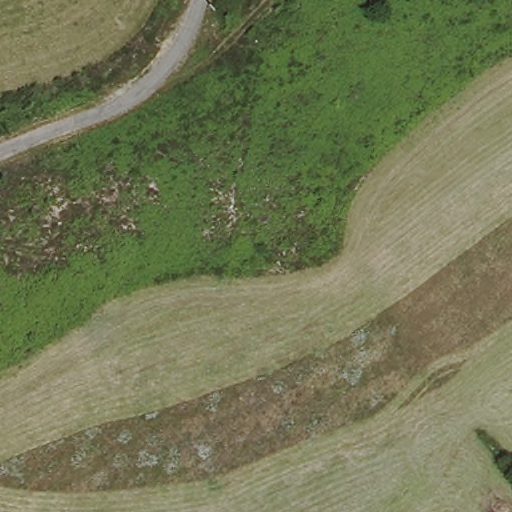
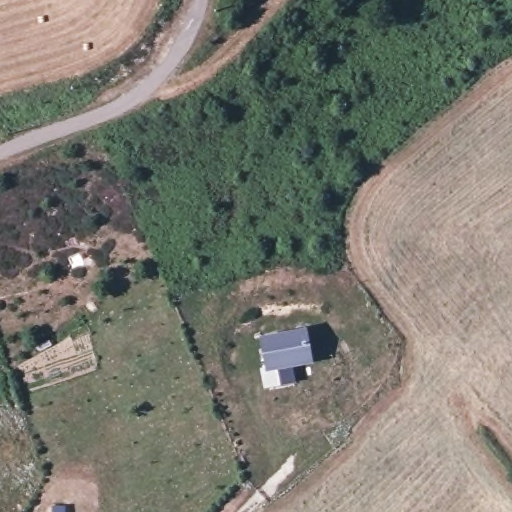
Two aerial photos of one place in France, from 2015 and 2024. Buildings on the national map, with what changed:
new [(308,329),(314,365),(266,374),(260,337),(308,329)]

